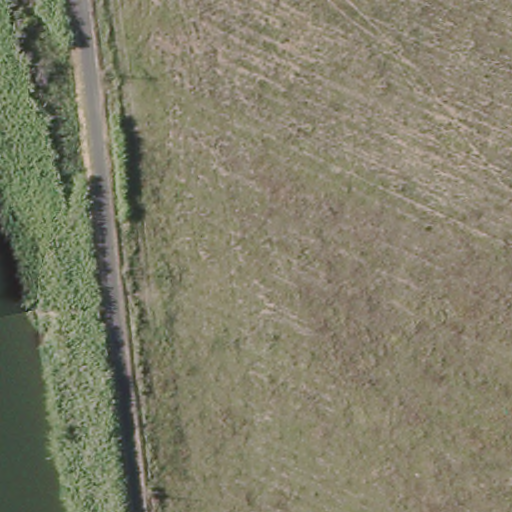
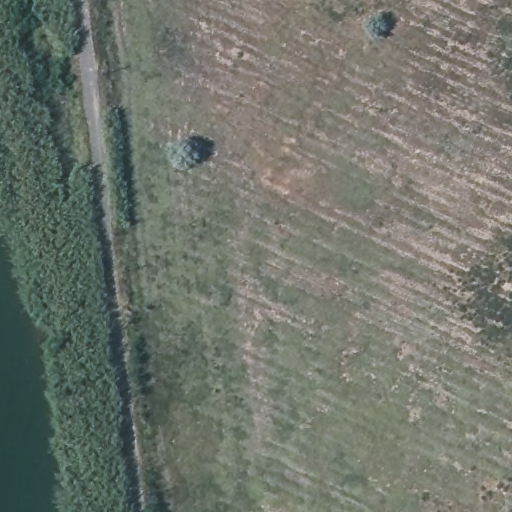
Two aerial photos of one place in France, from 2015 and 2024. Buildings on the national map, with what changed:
[]

